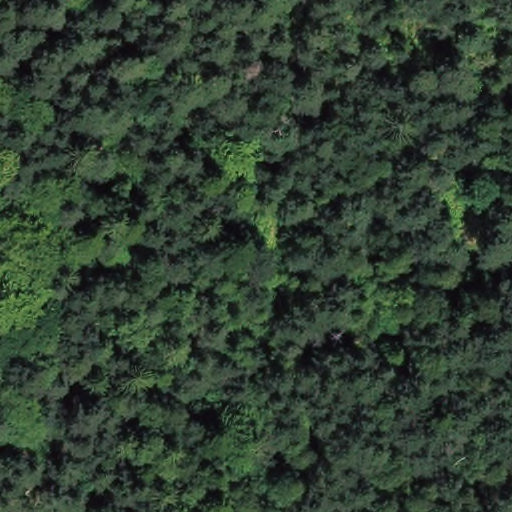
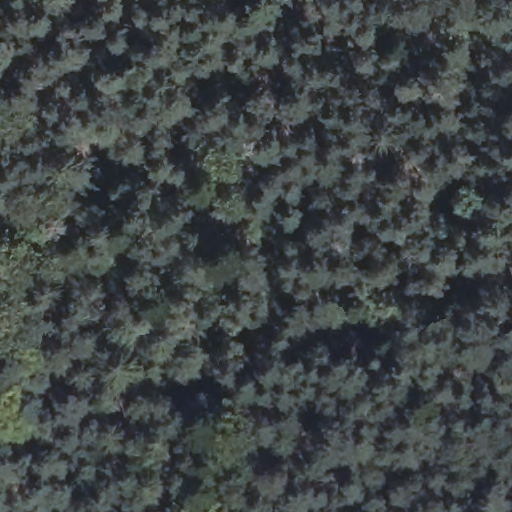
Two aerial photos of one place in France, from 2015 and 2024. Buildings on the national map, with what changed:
[]

